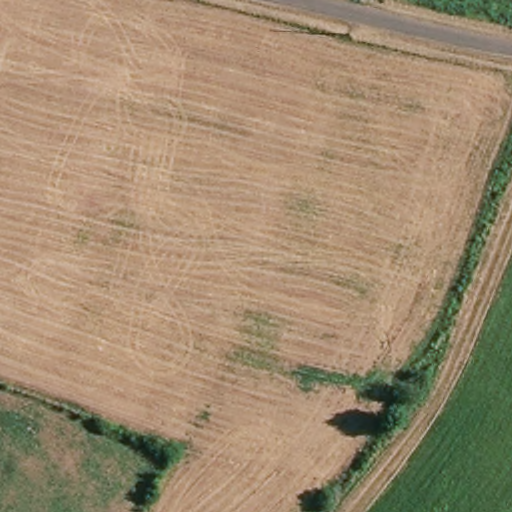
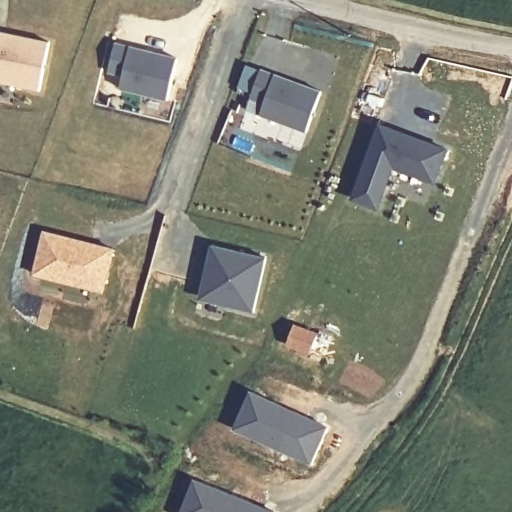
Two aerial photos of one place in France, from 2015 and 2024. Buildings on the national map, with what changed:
new [(40,92),(0,83),(0,31),(50,42),(40,92)]
new [(177,59),(167,101),(120,89),(124,76),(110,74),(116,44),(130,46),(177,59)]
new [(261,115),(265,104),(251,99),(261,69),(276,74),(321,91),(306,132),(261,115)]
new [(394,170),(379,210),(352,201),(380,124),(451,149),(437,185),(394,170)]
new [(43,229),(115,247),(103,295),(31,275),(43,229)]
new [(210,244),(267,257),(253,316),(197,302),(210,244)]
new [(294,323),(318,333),(308,357),(285,347),(294,323)]
new [(250,389),(329,427),(310,467),(231,431),(250,389)]
new [(278,512),(180,512),(194,477),(278,512)]

